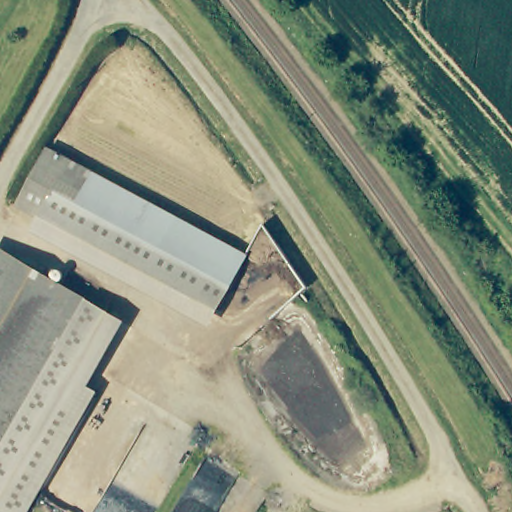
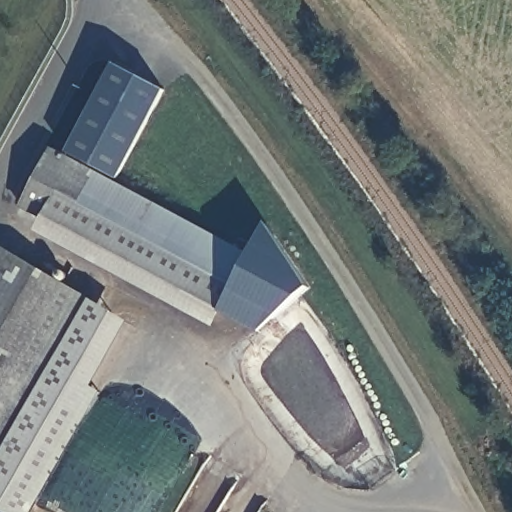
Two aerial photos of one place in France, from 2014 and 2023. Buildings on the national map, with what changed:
new [(70,155),(66,152),(114,64),(165,90),(117,179),(70,155)]
unchanged [(18,199),(47,142),(70,155),(53,187),(41,210),(18,199)]
unchanged [(70,155),(245,245),(229,279),(209,320),(34,228),(41,210),(53,187),(70,155)]
new [(229,279),(245,245),(251,252),(265,223),(310,288),(297,297),(257,334),(214,309),(229,279)]
unchanged [(0,455),(0,246),(24,260),(91,298),(0,455)]
unchanged [(91,298),(114,312),(78,373),(102,387),(30,512),(14,512),(0,504),(0,455),(91,298)]

